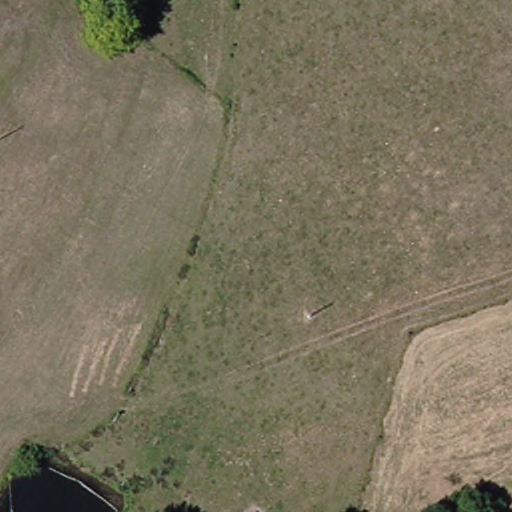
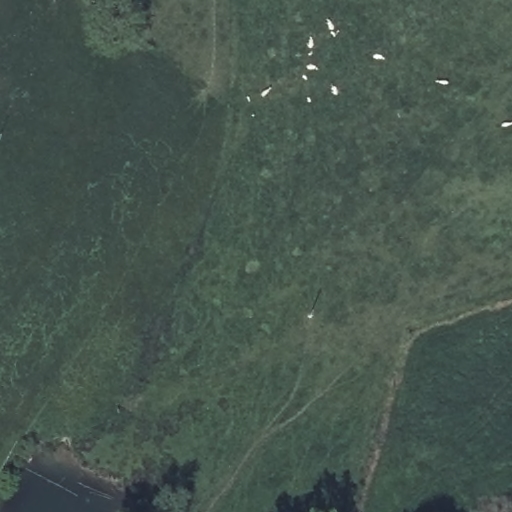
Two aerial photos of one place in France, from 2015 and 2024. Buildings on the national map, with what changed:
[]

